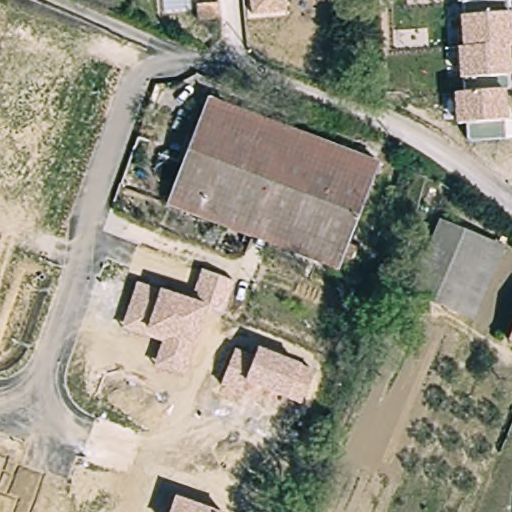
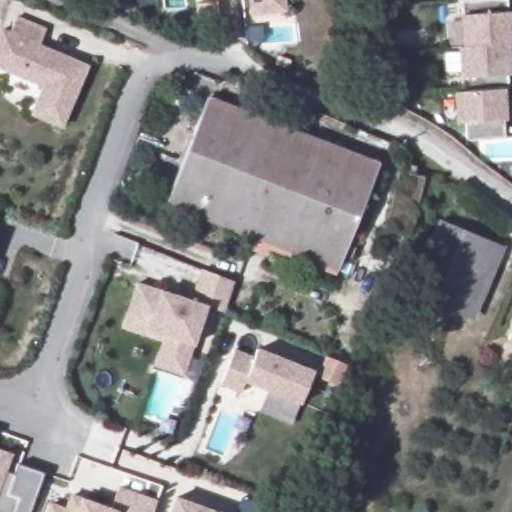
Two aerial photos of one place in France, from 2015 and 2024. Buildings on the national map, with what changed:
unchanged [(256,20),(254,0),(288,0),(288,1),(289,17),(278,18),(256,20)]
unchanged [(507,14),(511,14),(512,29),(512,45),(508,46),(509,73),(509,91),(505,91),(507,120),(502,121),(504,137),(468,141),(468,122),(457,124),(455,95),(463,92),(462,80),(458,80),(456,47),(462,47),(460,0),(500,0),(507,1),(507,14)]
new [(40,88),(0,71),(0,28),(10,32),(16,16),(46,30),(40,45),(89,66),(60,129),(30,115),(40,88)]
unchanged [(259,220),(174,187),(208,99),(293,132),(259,220)]
unchanged [(377,164),(344,252),(259,220),(293,132),(377,164)]
unchanged [(408,173),(410,167),(416,168),(414,175),(408,173)]
unchanged [(251,239),(167,206),(174,187),(259,220),(251,239)]
unchanged [(410,287),(440,217),(486,236),(457,307),(410,287)]
unchanged [(344,252),(337,272),(251,239),(259,220),(344,252)]
unchanged [(486,236),(503,242),(474,315),(457,307),(486,236)]
unchanged [(208,305),(194,347),(185,375),(155,365),(162,345),(125,331),(138,282),(193,300),(203,272),(234,285),(225,313),(208,305)]
unchanged [(257,353),(259,348),(299,366),(301,366),(315,371),(301,407),(287,397),(285,402),(246,386),(244,396),(220,387),(235,348),(257,353)]
new [(343,366),(334,386),(314,377),(323,357),(343,366)]
new [(285,402),(287,397),(298,405),(289,425),(258,412),(265,394),(285,402)]
new [(10,455),(4,472),(14,476),(17,465),(43,475),(30,512),(0,512),(0,451),(10,455)]
new [(153,512),(45,512),(48,502),(64,508),(69,494),(78,498),(109,508),(117,487),(156,501),(153,512)]
unchanged [(175,497),(213,512),(170,512),(175,497)]

